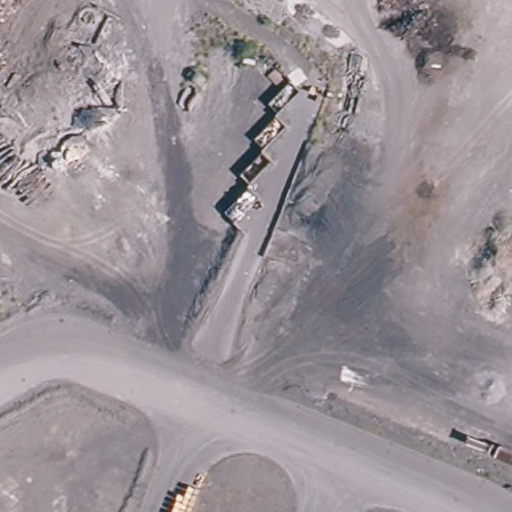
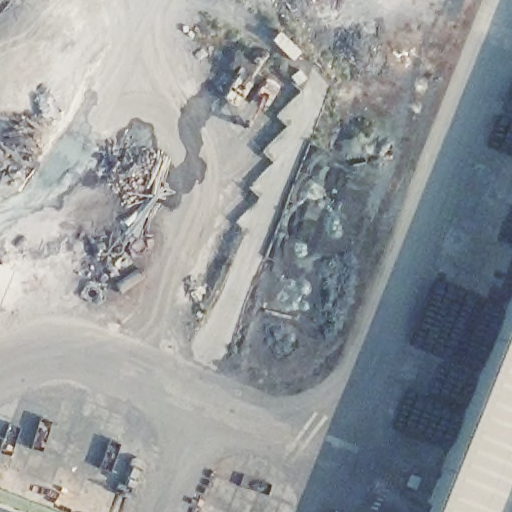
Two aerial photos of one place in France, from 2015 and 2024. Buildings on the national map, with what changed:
new [(7,268),(0,283),(0,265),(7,268)]
new [(512,286),(512,512),(423,512),(512,286)]

